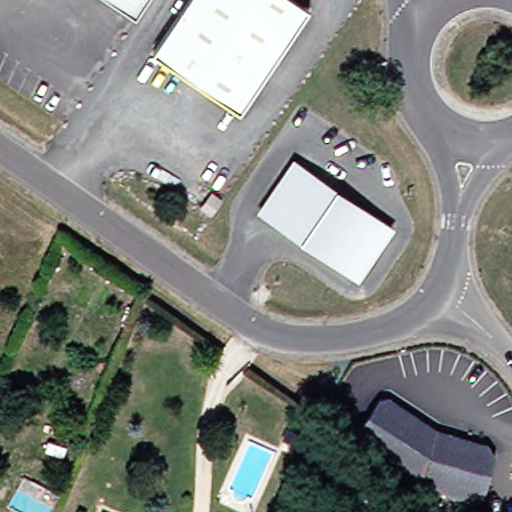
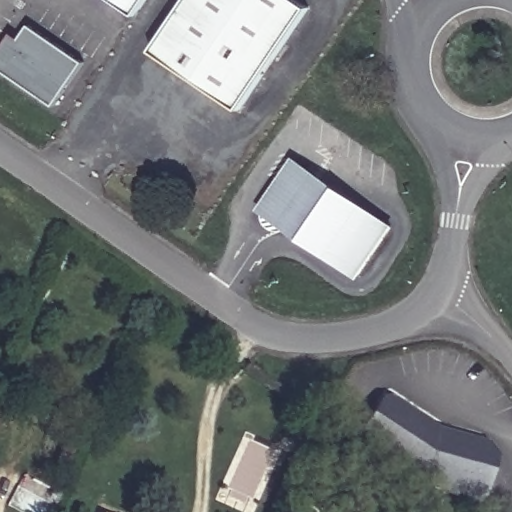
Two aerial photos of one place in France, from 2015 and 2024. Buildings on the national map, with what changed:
unchanged [(118,0),(151,0),(140,15),(118,0)]
unchanged [(245,111),(158,51),(193,0),(303,0),(315,9),(245,111)]
new [(9,34),(17,39),(27,25),(81,63),(50,108),(0,72),(0,47),(4,41),(9,34)]
unchanged [(307,177),(390,228),(356,278),(260,210),(293,161),(307,177)]
unchanged [(378,471),(386,458),(355,439),(378,404),(387,404),(433,437),(489,447),(495,461),(482,499),(473,512),(470,512),(397,466),(389,478),(378,471)]
unchanged [(300,434),(297,443),(285,438),(289,429),(300,434)]

